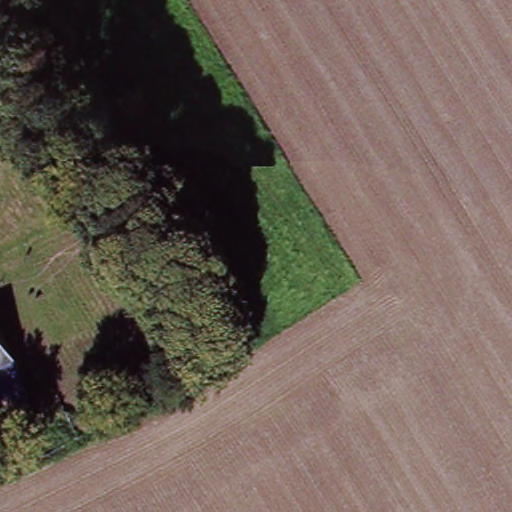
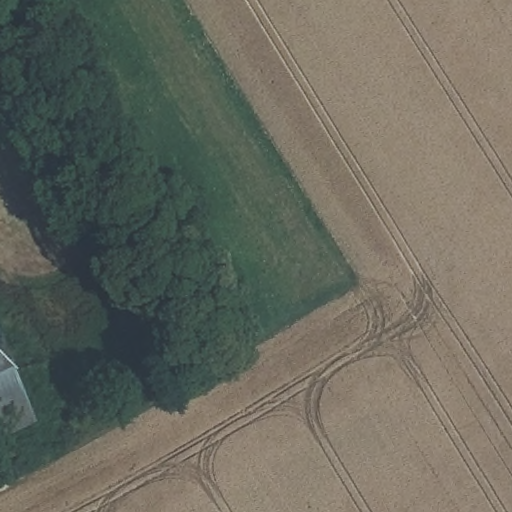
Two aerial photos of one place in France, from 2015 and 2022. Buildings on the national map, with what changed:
unchanged [(15,372),(11,373),(33,422),(0,438),(0,337),(15,372)]

